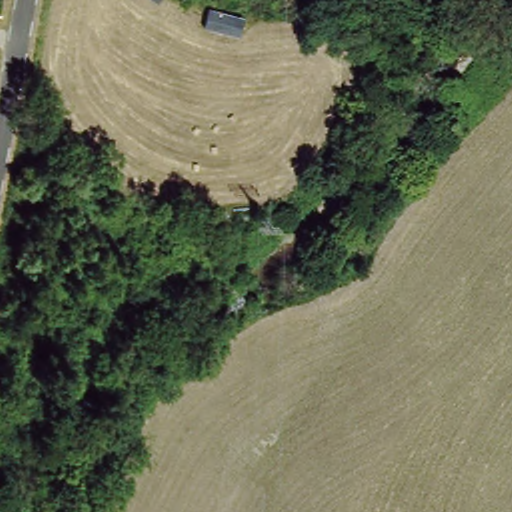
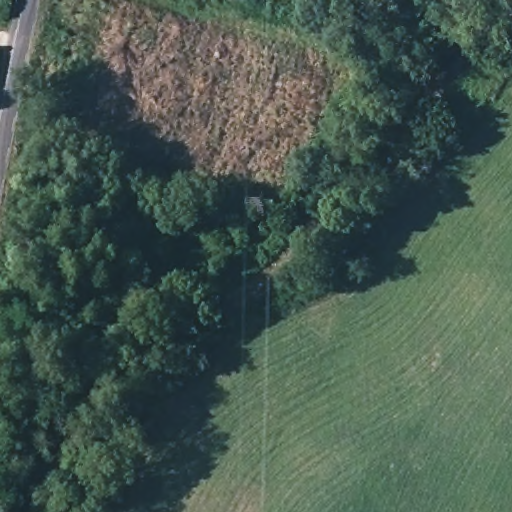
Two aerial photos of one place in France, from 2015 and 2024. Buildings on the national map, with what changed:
[]

